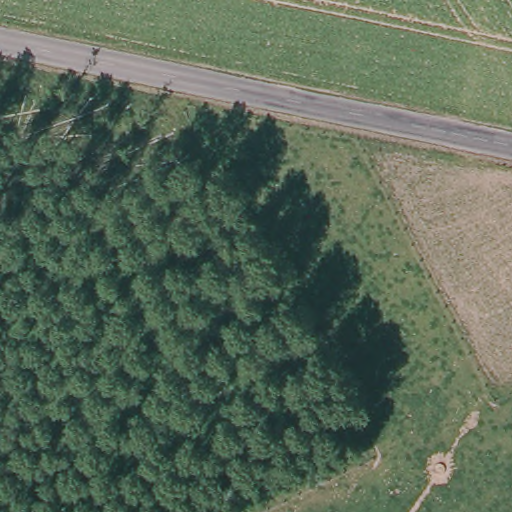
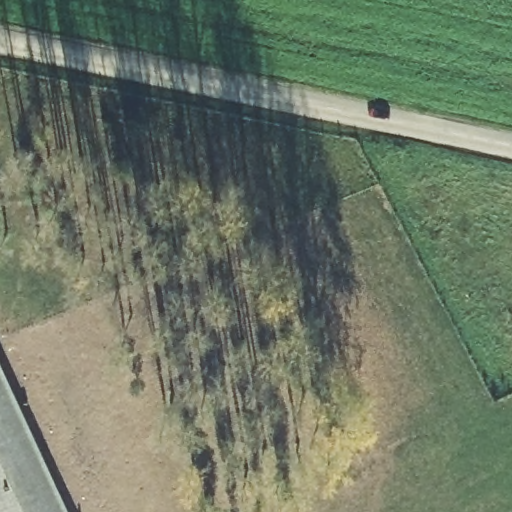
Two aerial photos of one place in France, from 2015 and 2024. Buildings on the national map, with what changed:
new [(70,512),(0,512),(0,356),(70,512)]

